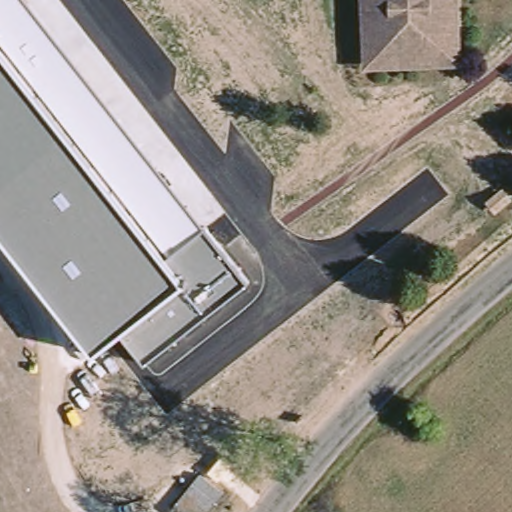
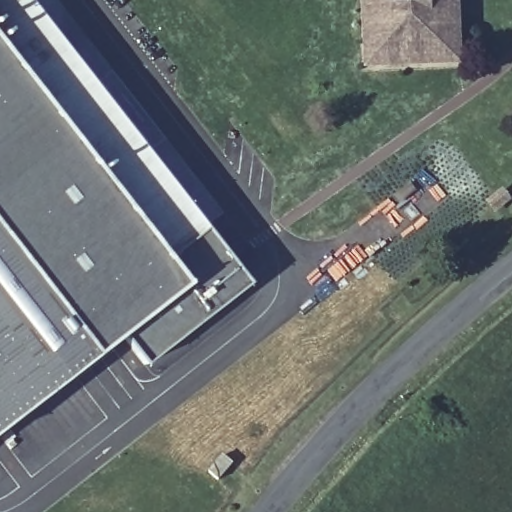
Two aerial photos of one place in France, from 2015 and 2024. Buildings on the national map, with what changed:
unchanged [(144,363),(120,330),(180,284),(0,50),(0,0),(28,0),(248,281),(144,363)]
unchanged [(372,0),(450,0),(450,33),(450,58),(420,59),(372,59),(372,0)]
unchanged [(120,330),(92,353),(0,234),(0,50),(180,284),(120,330)]
unchanged [(495,189),(506,202),(492,213),(481,202),(495,189)]
new [(92,353),(0,425),(0,234),(92,353)]

